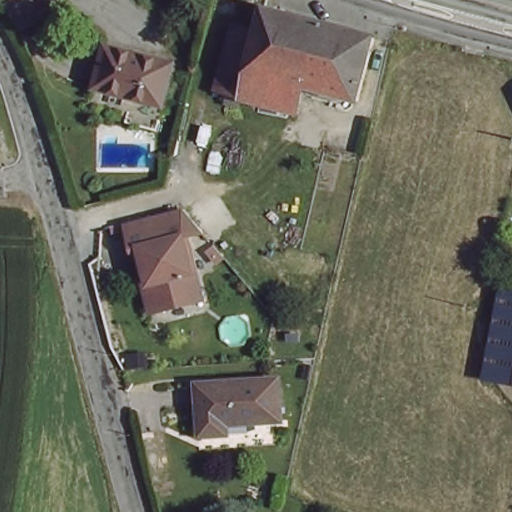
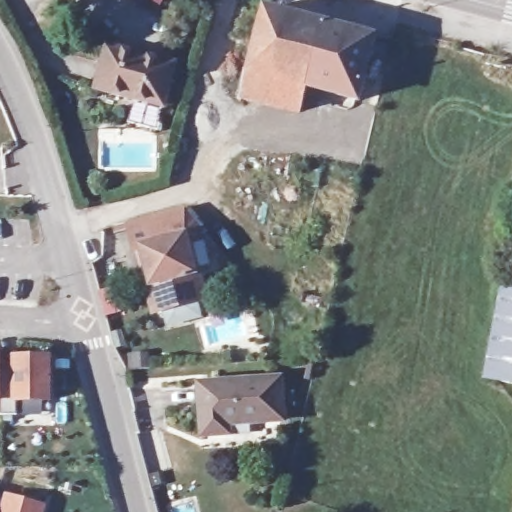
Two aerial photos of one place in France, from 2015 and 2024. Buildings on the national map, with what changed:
unchanged [(219,93),(242,9),(249,11),(268,15),(246,101),(219,93)]
unchanged [(269,12),(377,41),(362,107),(306,91),(300,117),(246,101),(268,15),(269,12)]
unchanged [(166,63),(155,103),(87,84),(99,43),(166,63)]
unchanged [(143,251),(135,253),(129,226),(186,211),(206,235),(187,238),(196,271),(204,301),(185,304),(159,311),(152,286),(143,251)]
unchanged [(490,351),(499,292),(512,295),(512,383),(486,377),(490,351)]
new [(8,357),(50,358),(50,407),(14,408),(14,415),(0,415),(0,368),(8,368),(8,357)]
unchanged [(249,443),(200,444),(197,379),(299,376),(303,415),(248,416),(249,443)]
new [(1,512),(6,494),(47,504),(45,512),(1,512)]

